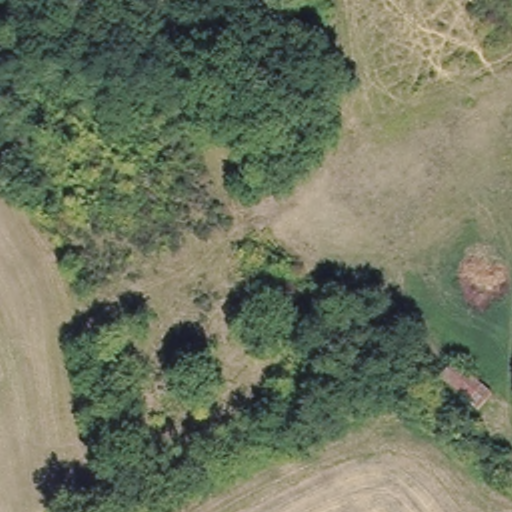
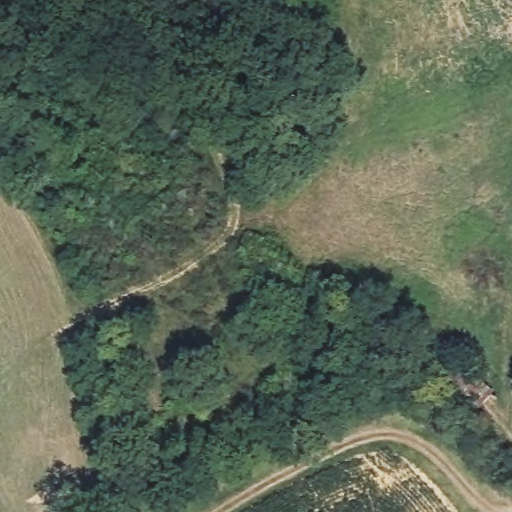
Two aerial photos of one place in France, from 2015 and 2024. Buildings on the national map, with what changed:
unchanged [(473,412),(432,371),(453,355),(488,392),(473,412)]

